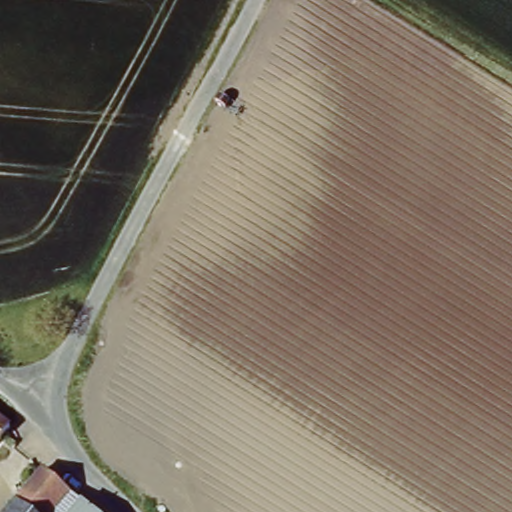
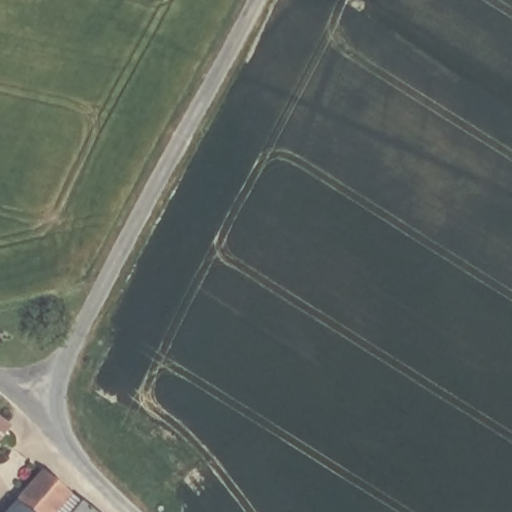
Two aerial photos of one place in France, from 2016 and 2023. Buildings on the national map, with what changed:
unchanged [(0,422),(7,428),(0,437),(0,422)]
unchanged [(37,470),(67,493),(52,512),(3,512),(37,470)]
unchanged [(89,512),(52,512),(67,493),(89,512)]

